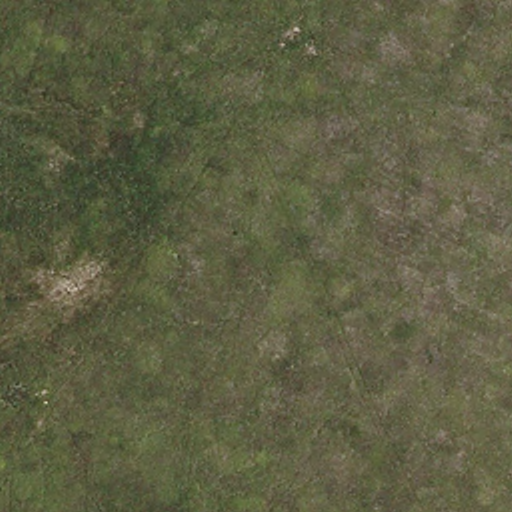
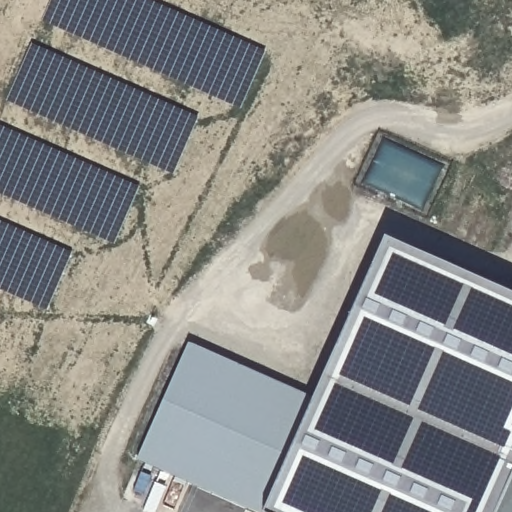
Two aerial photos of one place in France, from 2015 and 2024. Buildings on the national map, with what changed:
new [(316,395),(385,236),(512,291),(512,512),(262,512),(138,458),(189,340),(316,395)]

